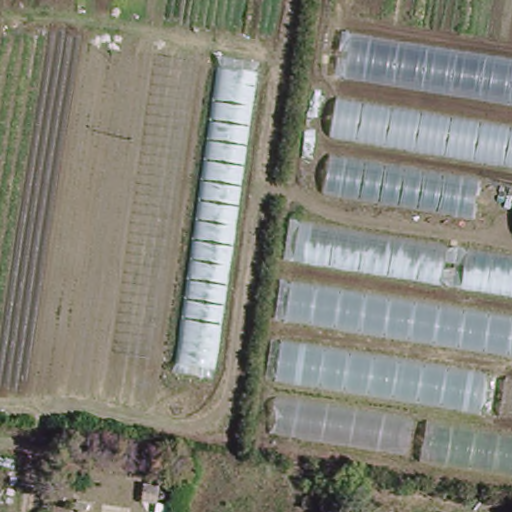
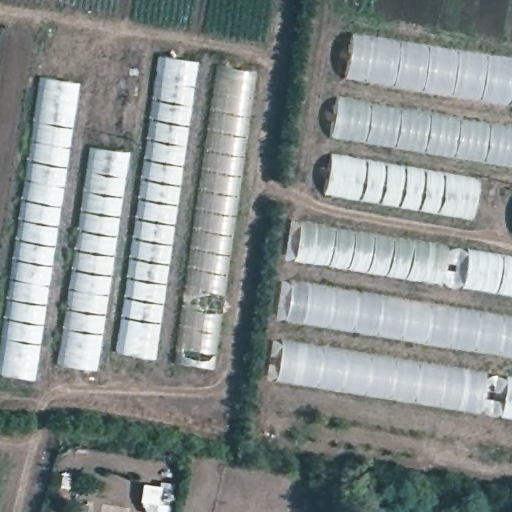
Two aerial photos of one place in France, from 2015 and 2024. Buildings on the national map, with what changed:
unchanged [(353,33),(512,61),(512,102),(345,74),(353,33)]
new [(153,357),(117,352),(159,54),(198,59),(153,357)]
unchanged [(221,55),(255,60),(208,374),(178,368),(221,55)]
new [(0,375),(0,350),(40,75),(78,81),(33,380),(0,375)]
unchanged [(336,93),(512,123),(512,163),(331,131),(336,93)]
new [(96,369),(58,364),(91,144),(128,149),(96,369)]
unchanged [(332,154),(479,179),(475,215),(328,188),(332,154)]
unchanged [(294,224),(512,257),(512,291),(289,257),(294,224)]
unchanged [(281,318),(286,288),(512,322),(512,352),(281,318)]
unchanged [(486,376),(481,407),(276,378),(281,347),(486,376)]
unchanged [(505,414),(511,378),(512,378),(512,415),(505,414)]
demolished [(275,395),(418,419),(411,452),(271,428),(275,395)]
demolished [(430,421),(512,433),(512,471),(424,458),(430,421)]

